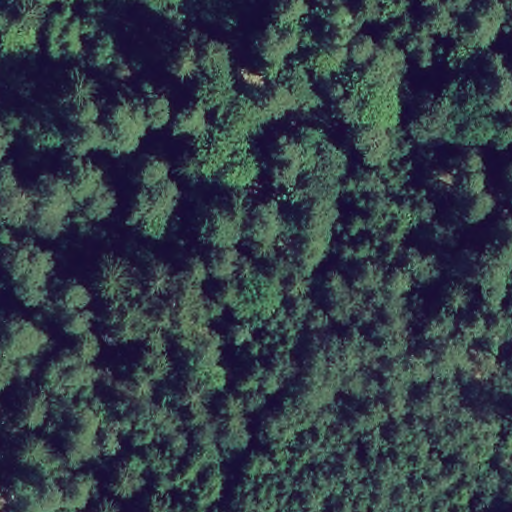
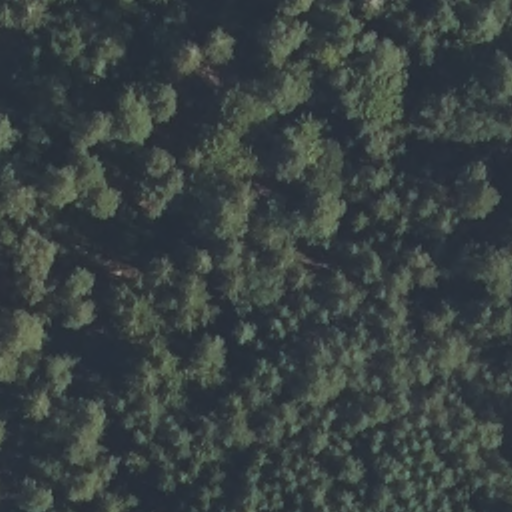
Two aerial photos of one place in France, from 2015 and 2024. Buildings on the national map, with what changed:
[]

